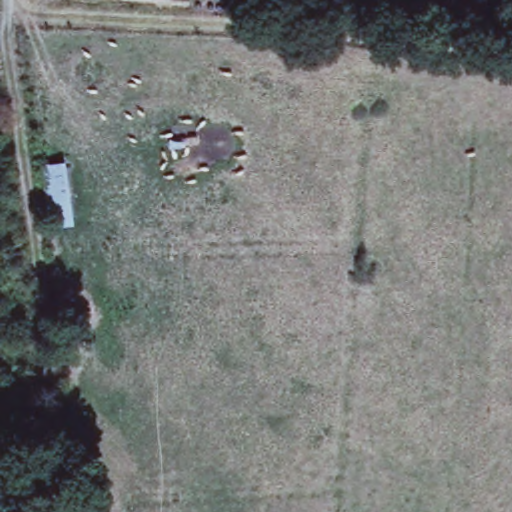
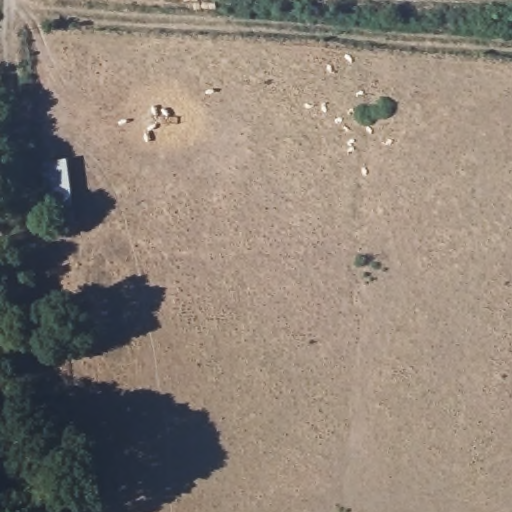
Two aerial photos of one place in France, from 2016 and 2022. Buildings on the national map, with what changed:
unchanged [(67,168),(74,227),(50,230),(43,170),(67,168)]

